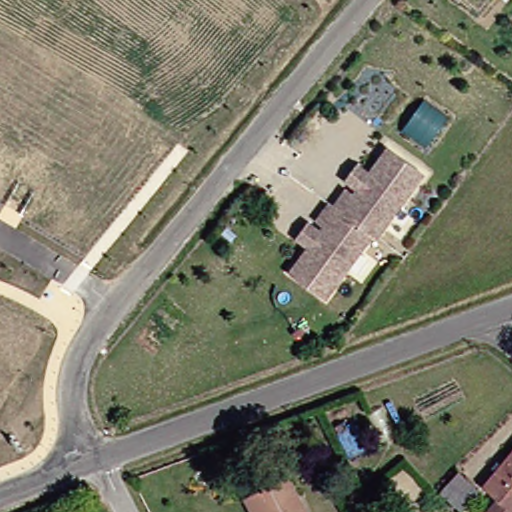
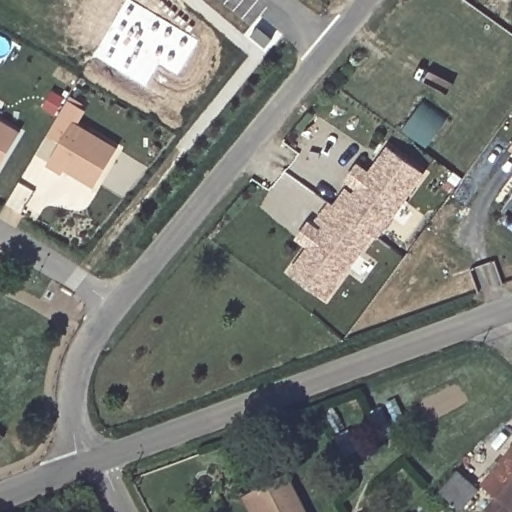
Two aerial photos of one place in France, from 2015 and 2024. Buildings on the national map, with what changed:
new [(180,74),(161,62),(147,86),(95,53),(125,0),(135,0),(201,40),(180,74)]
new [(77,127),(71,123),(61,140),(48,133),(68,99),(87,110),(77,127)]
new [(18,132),(0,163),(0,121),(18,132)]
new [(71,123),(116,150),(95,185),(66,167),(62,174),(46,165),(71,123)]
unchanged [(373,233),(326,296),(291,270),(326,223),(319,218),(331,202),(336,205),(347,188),(355,193),(389,146),(425,172),(377,236),(373,233)]
new [(512,146),(512,148),(511,147),(512,146)]
unchanged [(491,498),(504,486),(490,472),(512,450),(512,506),(506,512),(491,498)]
unchanged [(439,477),(461,457),(471,467),(468,471),(478,482),(470,490),(461,499),(439,477)]
unchanged [(243,512),(236,497),(246,492),(285,472),(303,512),(243,512)]
unchanged [(101,512),(78,512),(96,503),(101,512)]

